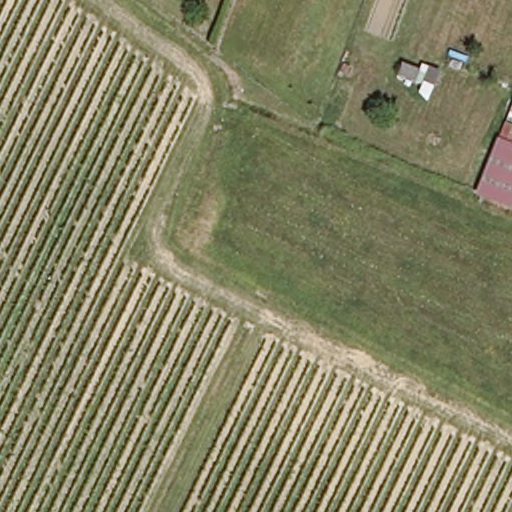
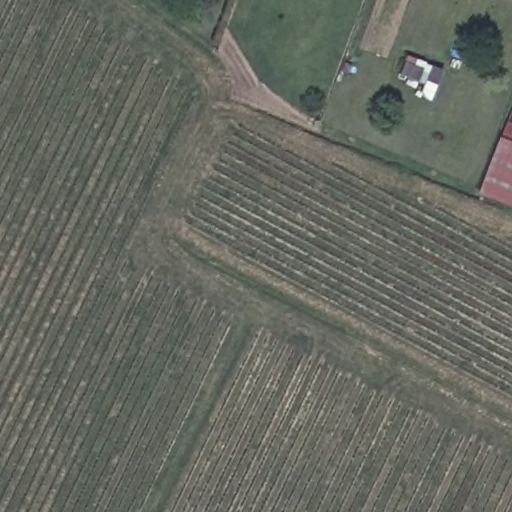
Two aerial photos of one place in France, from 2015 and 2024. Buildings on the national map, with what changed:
unchanged [(507,121),(512,123),(512,206),(477,193),(507,121)]

